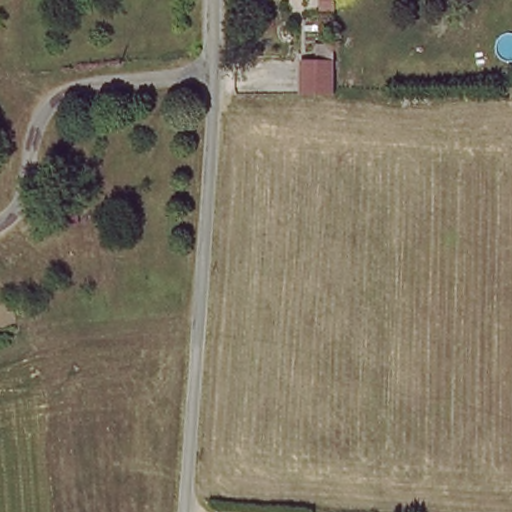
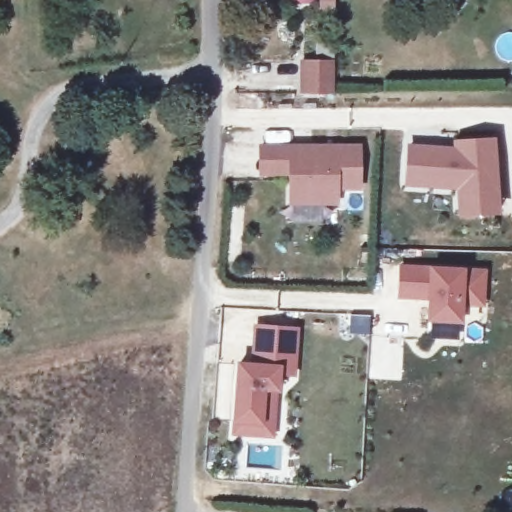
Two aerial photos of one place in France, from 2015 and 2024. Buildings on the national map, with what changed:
unchanged [(331,58),(331,94),(294,93),(294,59),(331,58)]
new [(459,215),(457,189),(404,186),(407,144),(454,146),(453,140),(495,138),(501,214),(459,215)]
new [(361,190),(338,189),(338,205),(290,204),(289,175),(257,175),(258,144),(360,144),(361,190)]
new [(483,278),(481,314),(460,314),(460,338),(423,337),(425,310),(395,308),(398,273),(483,278)]
new [(296,378),(281,376),(281,393),(275,393),(273,439),(232,437),(233,424),(237,361),(248,363),(252,324),(300,328),(296,378)]

